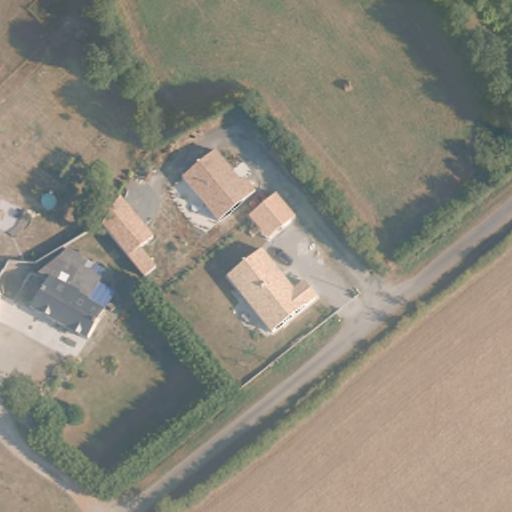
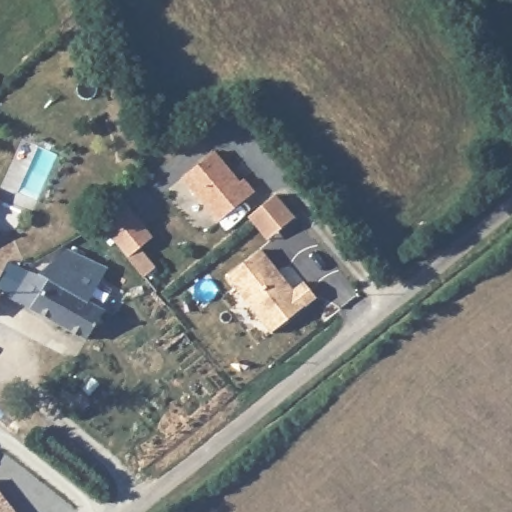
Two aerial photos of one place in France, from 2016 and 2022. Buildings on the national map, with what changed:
unchanged [(245,177),(256,192),(219,220),(183,176),(216,151),(239,181),(245,177)]
unchanged [(1,194),(0,195),(0,194),(1,194)]
unchanged [(141,246),(155,263),(139,276),(124,256),(100,222),(118,194),(151,234),(141,246)]
unchanged [(276,194),(297,218),(270,240),(248,216),(276,194)]
unchanged [(293,290),(306,280),(321,299),(271,337),(225,279),(262,250),(293,290)]
unchanged [(28,266),(36,269),(70,256),(80,261),(75,272),(79,274),(58,318),(56,317),(27,304),(3,293),(8,279),(9,280),(21,284),(26,271),(28,266)]
unchanged [(89,279),(94,269),(104,274),(92,299),(103,304),(89,336),(57,321),(58,318),(79,274),(89,279)]
unchanged [(1,294),(0,296),(0,294),(1,294)]
new [(16,512),(0,512),(0,492),(16,512)]

